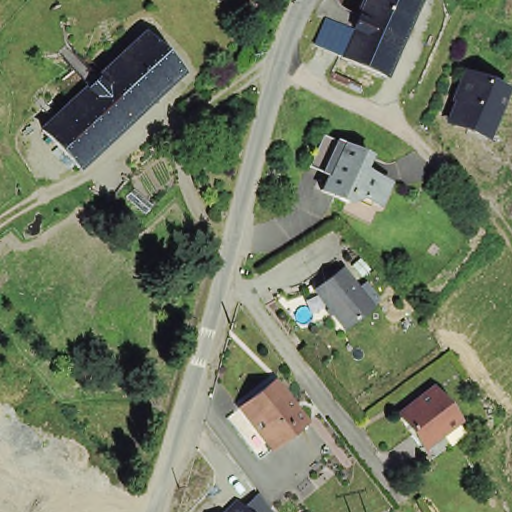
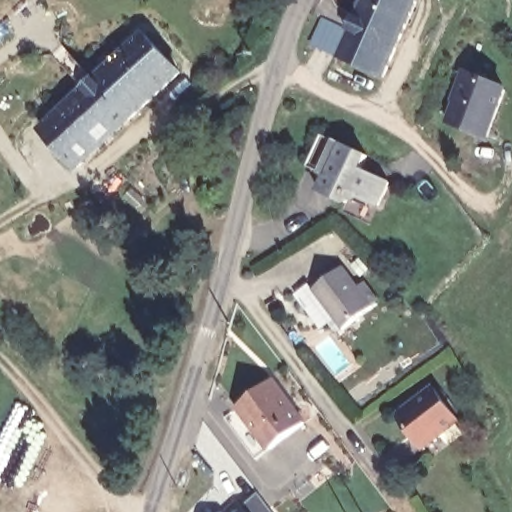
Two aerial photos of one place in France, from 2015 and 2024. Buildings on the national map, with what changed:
unchanged [(340,61),(315,51),(327,25),(310,17),(314,7),(320,0),(337,0),(332,11),(356,21),(357,20),(403,39),(385,80),(380,78),(340,61)]
unchanged [(357,20),(365,0),(415,0),(418,1),(403,39),(357,20)]
unchanged [(77,167),(42,129),(142,35),(175,72),(77,167)]
unchanged [(499,90),(480,136),(460,128),(440,120),(459,73),(499,90)]
unchanged [(362,163),(390,176),(379,200),(351,186),(346,196),(320,184),(327,169),(322,165),(307,159),(322,128),(337,135),(368,149),(362,163)]
unchanged [(343,260),(374,304),(344,322),(313,280),(343,260)]
unchanged [(226,411),(240,400),(275,375),(307,418),(273,443),(272,442),(257,453),(226,411)]
unchanged [(433,388),(458,421),(421,449),(396,416),(433,388)]
unchanged [(238,505),(252,490),(270,512),(223,512),(234,501),(238,505)]

